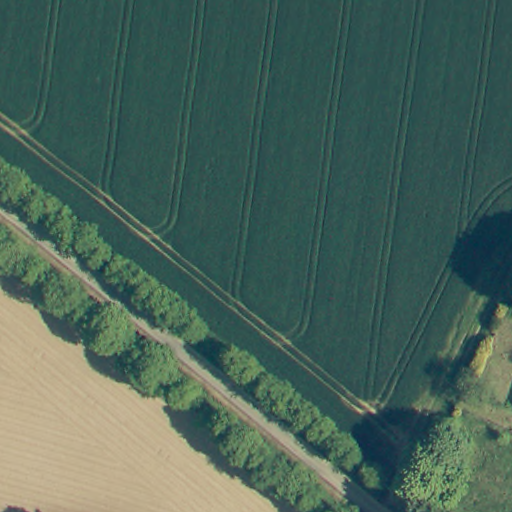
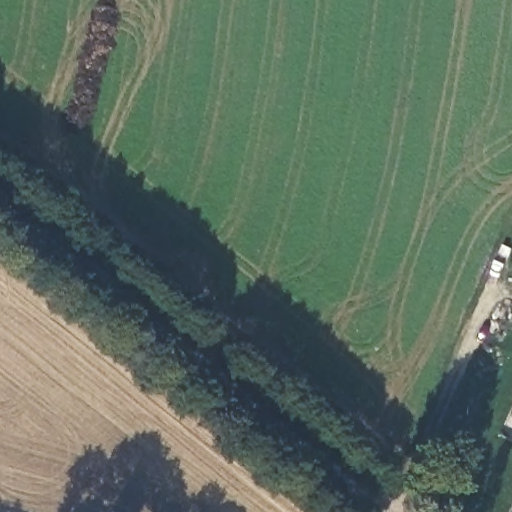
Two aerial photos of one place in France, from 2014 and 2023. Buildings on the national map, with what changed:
[]

